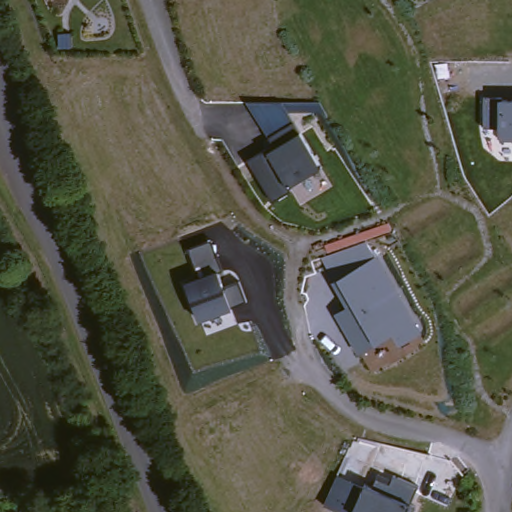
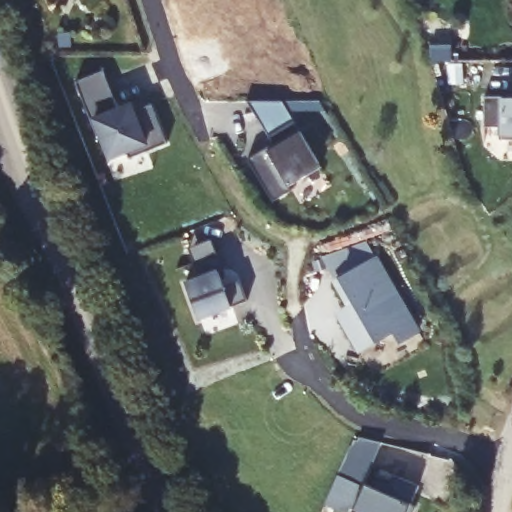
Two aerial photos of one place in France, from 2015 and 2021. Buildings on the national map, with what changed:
new [(129,152),(109,160),(100,137),(97,137),(78,82),(104,72),(118,107),(133,102),(137,110),(152,104),(167,144),(130,157),(129,152)]
unchanged [(502,96),(502,99),(512,99),(512,136),(500,136),(500,127),(482,126),(483,97),(502,96)]
new [(270,135),(248,101),(283,101),(320,101),(325,111),(289,112),(294,120),(270,135)]
unchanged [(268,147),(262,139),(294,120),(300,131),(323,166),(293,185),(276,198),(248,158),(268,147)]
unchanged [(214,237),(225,267),(219,270),(226,286),(242,280),(250,300),(232,306),(200,318),(186,278),(200,272),(190,245),(214,237)]
unchanged [(345,308),(332,282),(321,258),(367,242),(373,258),(380,256),(421,332),(400,346),(392,333),(376,342),(358,353),(335,313),(345,308)]
unchanged [(385,445),(373,485),(380,469),(420,485),(410,500),(414,502),(409,512),(359,512),(355,511),(325,500),(355,433),(385,445)]

